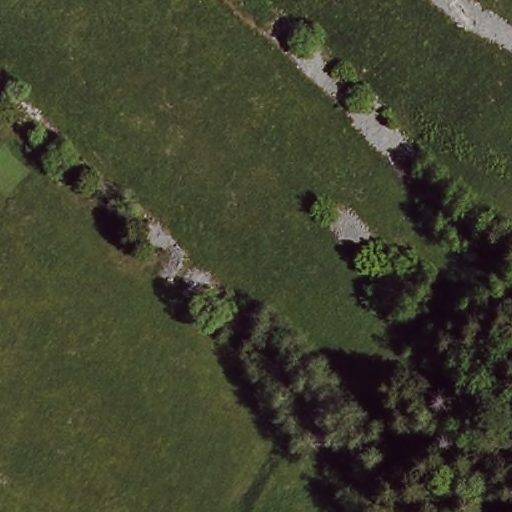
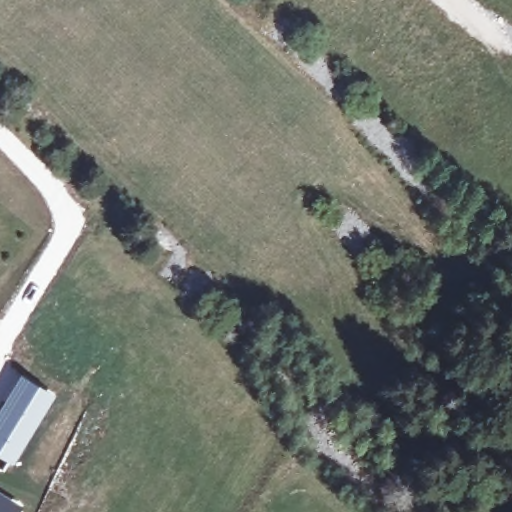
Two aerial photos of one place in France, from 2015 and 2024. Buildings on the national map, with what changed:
new [(56,395),(13,466),(0,458),(0,404),(19,373),(56,395)]
new [(21,512),(0,512),(0,492),(24,506),(21,512)]

